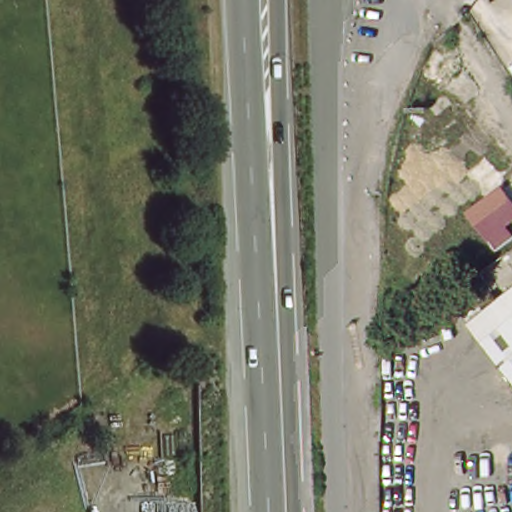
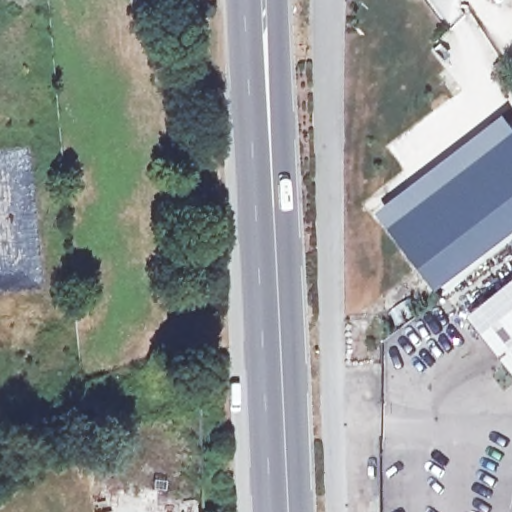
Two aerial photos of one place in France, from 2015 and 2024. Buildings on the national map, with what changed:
new [(386,224),(510,129),(512,131),(512,244),(442,295),(386,224)]
demolished [(510,223),(512,226),(512,244),(501,252),(471,214),(485,204),(483,194),(494,196),(508,185),(512,190),(512,221),(510,223)]
unchanged [(475,323),(512,294),(512,372),(475,323)]
unchanged [(198,378),(198,393),(179,393),(179,378),(198,378)]

